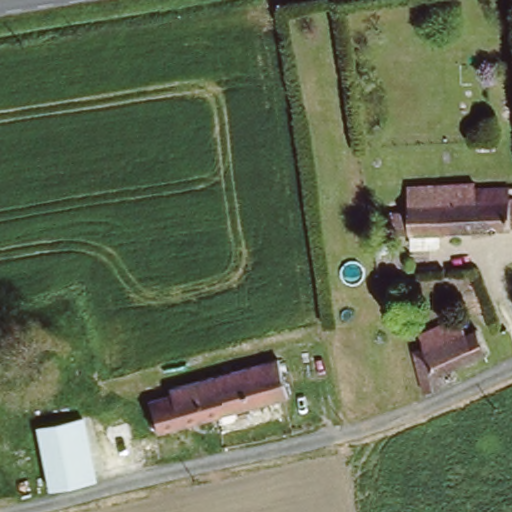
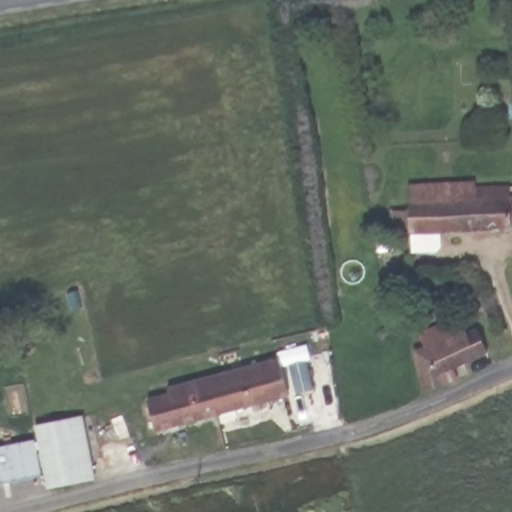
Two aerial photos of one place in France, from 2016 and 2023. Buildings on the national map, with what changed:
unchanged [(415,211),(414,183),(478,179),(479,190),(512,189),(512,231),(415,234),(397,235),(396,211),(415,211)]
unchanged [(482,352),(437,369),(440,376),(422,384),(410,349),(419,346),(414,332),(455,318),(461,335),(475,330),(482,352)]
unchanged [(236,407),(239,419),(222,424),(219,413),(157,430),(149,401),(165,397),(163,390),(279,357),(288,393),(236,407)]
unchanged [(145,435),(132,438),(130,432),(122,434),(118,421),(140,415),(145,435)]
unchanged [(90,479),(45,490),(32,428),(79,422),(90,479)]
new [(38,482),(0,489),(0,449),(30,443),(38,482)]

